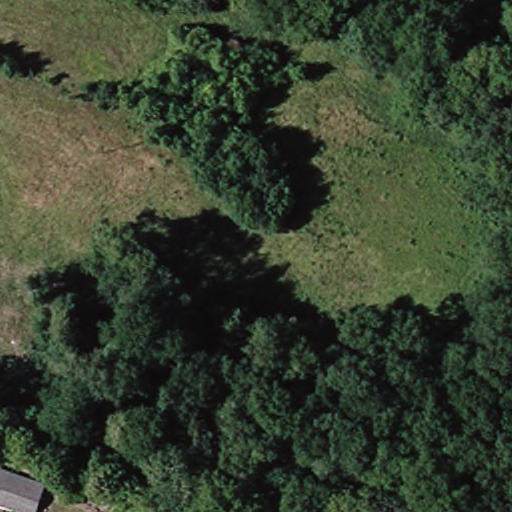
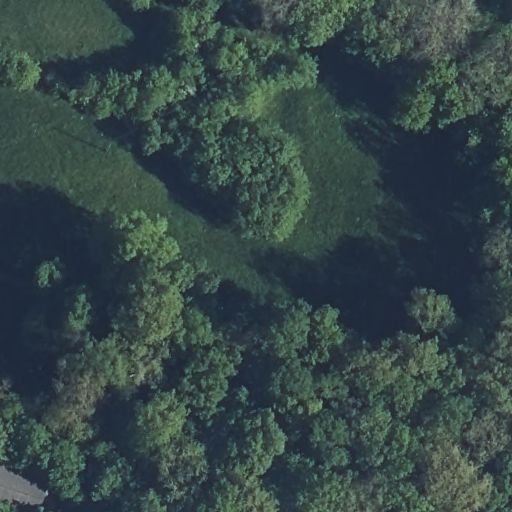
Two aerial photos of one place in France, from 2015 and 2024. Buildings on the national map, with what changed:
unchanged [(0,479),(36,491),(31,506),(30,512),(0,512),(0,479)]

